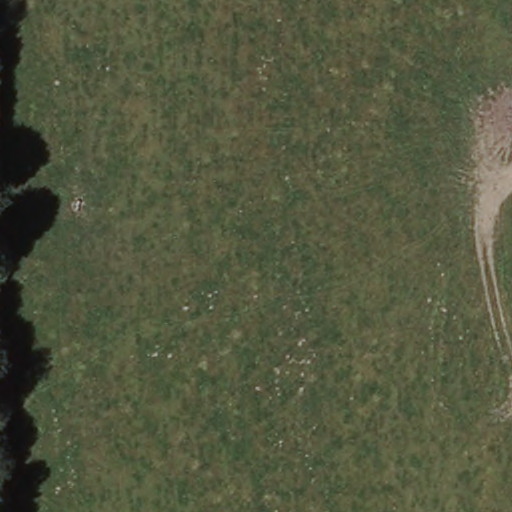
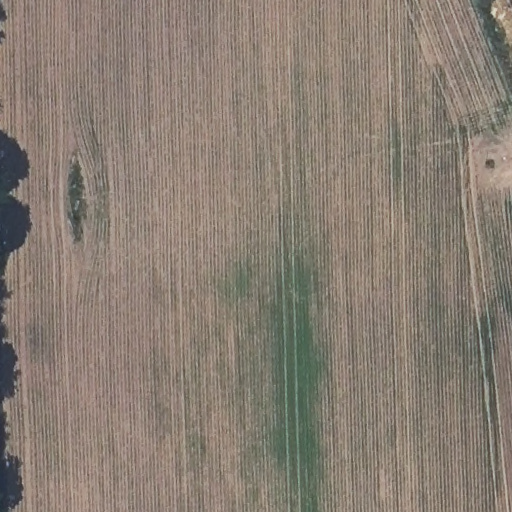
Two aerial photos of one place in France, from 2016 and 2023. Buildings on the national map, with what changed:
[]

